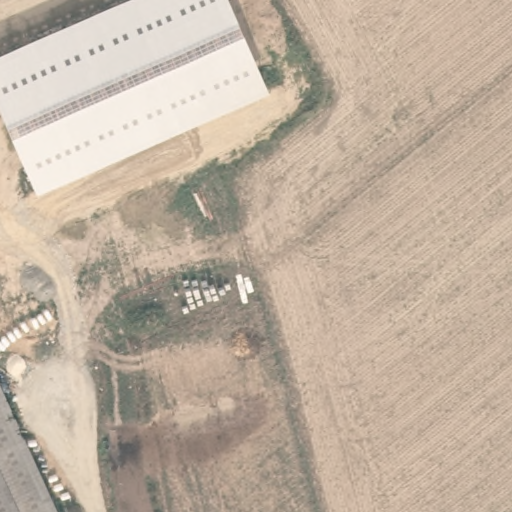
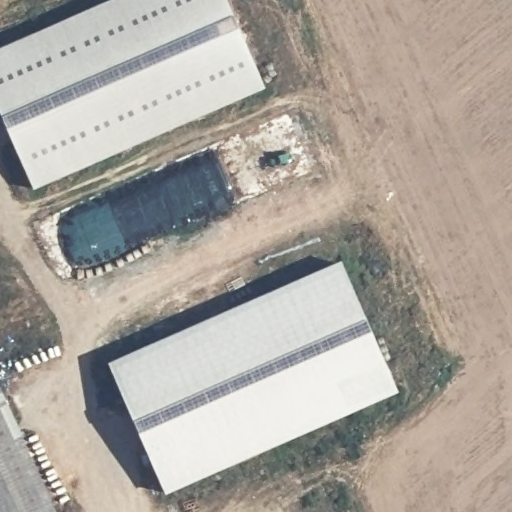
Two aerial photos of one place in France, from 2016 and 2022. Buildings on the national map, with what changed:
unchanged [(0,111),(0,50),(113,0),(227,0),(267,90),(35,192),(0,111)]
new [(400,394),(168,496),(111,364),(342,263),(400,394)]
unchanged [(0,395),(55,512),(0,512),(0,395)]

